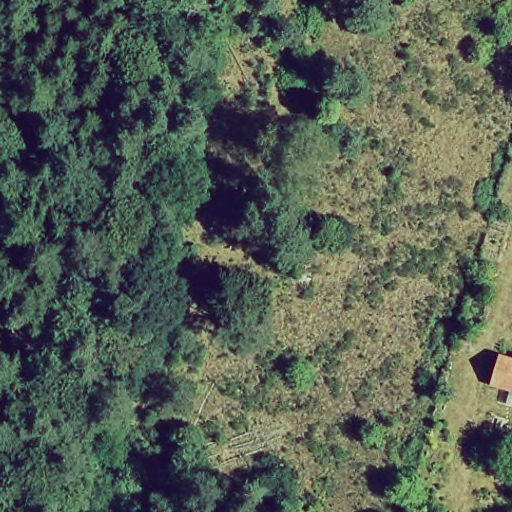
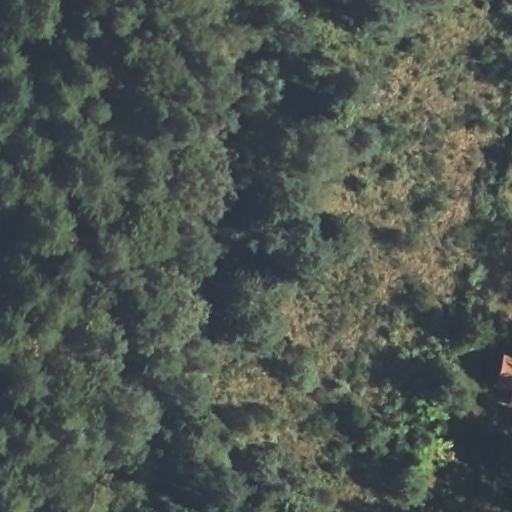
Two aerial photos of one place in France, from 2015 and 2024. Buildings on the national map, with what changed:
unchanged [(499,356),(512,360),(512,396),(489,391),(499,356)]

